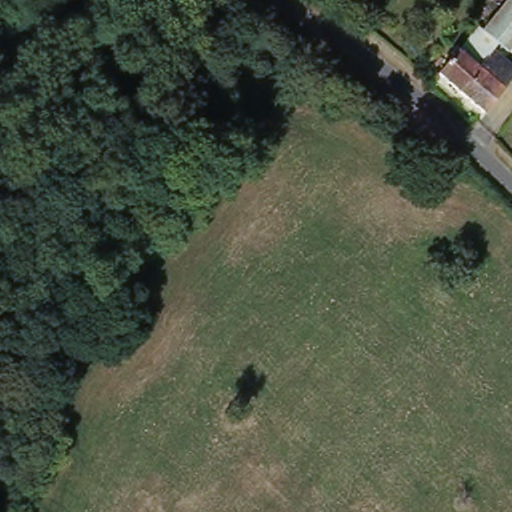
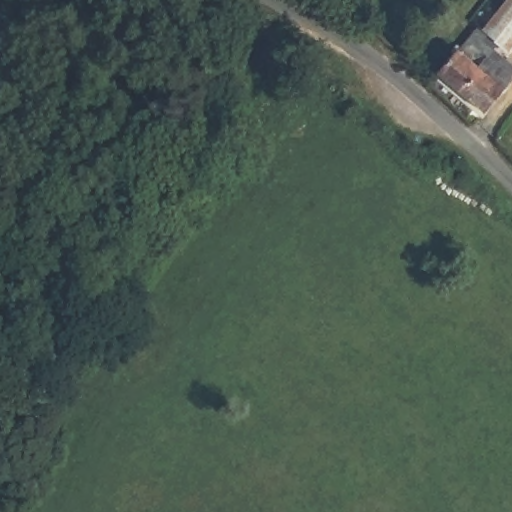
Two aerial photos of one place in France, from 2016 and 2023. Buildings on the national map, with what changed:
unchanged [(440,76),(478,31),(484,34),(511,0),(512,0),(512,53),(505,46),(495,58),(512,69),(512,85),(489,118),(440,76)]

